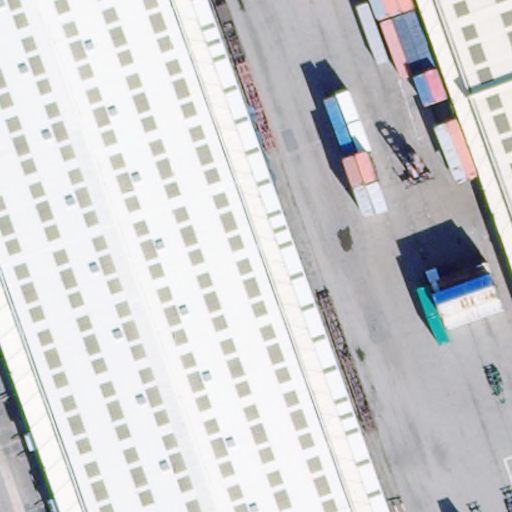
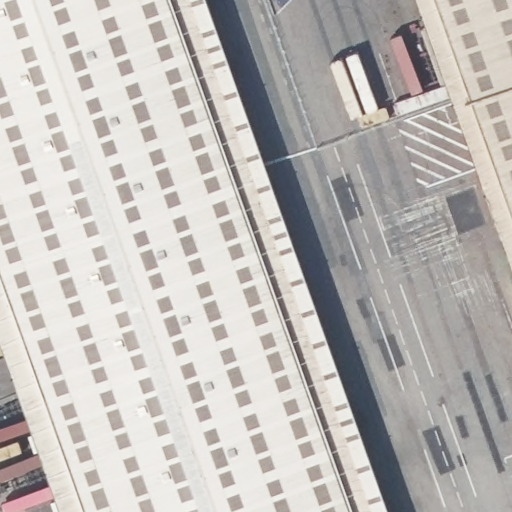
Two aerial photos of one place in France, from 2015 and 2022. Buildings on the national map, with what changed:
unchanged [(170,0),(353,512),(81,512),(0,284),(0,0),(170,0)]
unchanged [(512,0),(512,225),(432,0),(512,0)]

